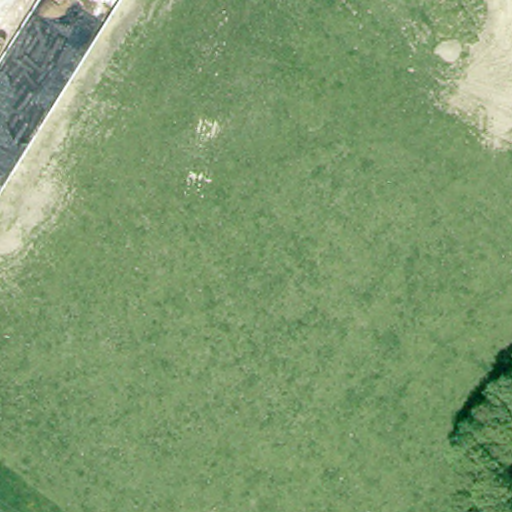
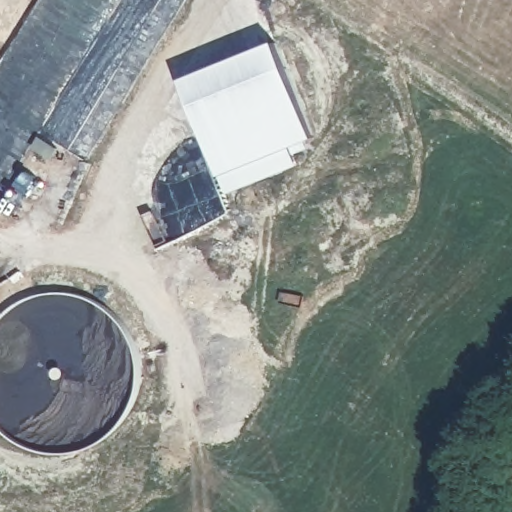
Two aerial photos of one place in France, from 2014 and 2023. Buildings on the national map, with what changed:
new [(280,46),(318,143),(221,183),(183,85),(280,46)]

